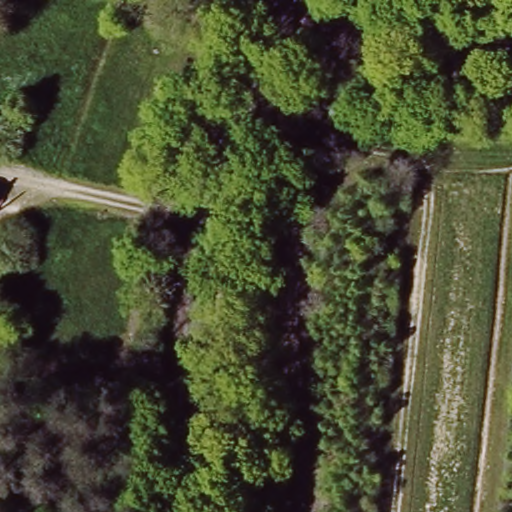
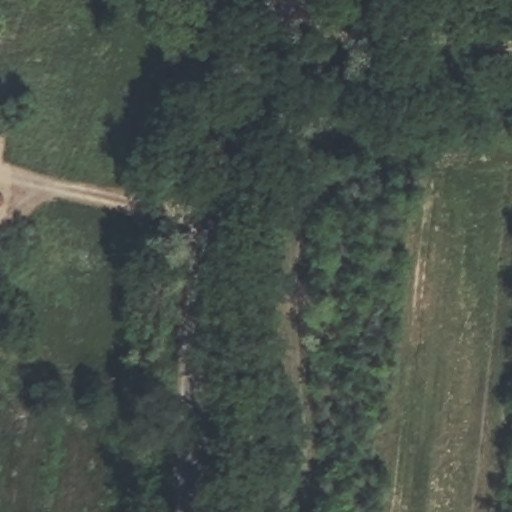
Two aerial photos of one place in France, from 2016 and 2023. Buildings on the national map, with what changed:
unchanged [(1,195),(0,200),(0,194),(1,195)]

